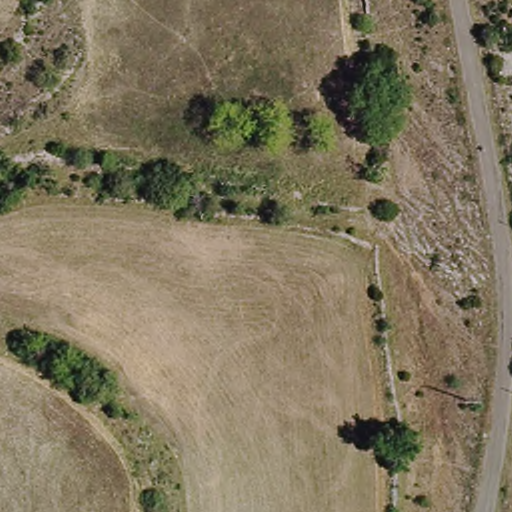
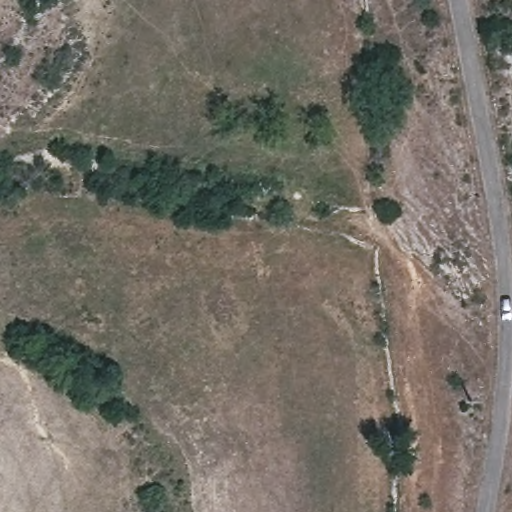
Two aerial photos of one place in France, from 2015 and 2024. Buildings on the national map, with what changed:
[]

